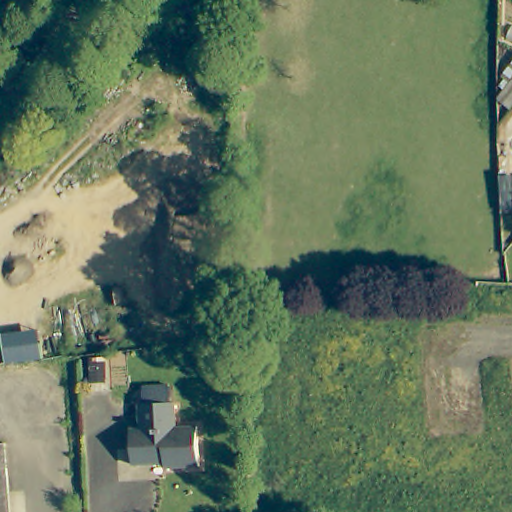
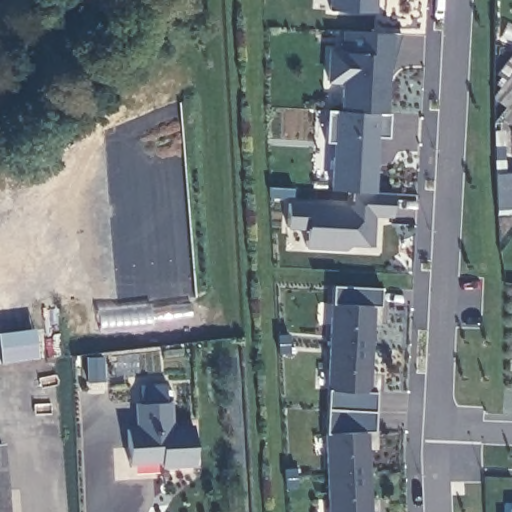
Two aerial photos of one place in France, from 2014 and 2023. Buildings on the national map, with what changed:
new [(380,12),(335,10),(335,0),(380,0),(380,12)]
new [(330,49),(345,49),(345,32),(350,32),(350,26),(395,29),(395,34),(403,34),(394,69),(391,69),(389,117),(345,116),(342,111),(342,84),(328,82),(330,49)]
unchanged [(489,94),(512,68),(512,95),(502,106),(489,94)]
new [(387,136),(379,136),(377,192),(396,195),(394,217),(375,217),(375,247),(351,246),(346,251),(305,249),(308,230),(290,229),(289,199),(271,197),(273,187),(296,189),(296,202),(352,205),(353,190),(332,190),(335,141),(328,141),(328,110),(342,111),(345,116),(389,117),(387,136)]
new [(508,172),(512,172),(512,209),(505,210),(505,225),(500,226),(495,130),(505,130),(508,172)]
new [(380,323),(375,323),(371,373),(380,373),(377,430),(377,448),(370,449),(371,498),(378,498),(379,512),(329,512),(325,433),(327,433),(330,388),(328,388),(332,303),(335,303),(335,285),(381,287),(381,305),(380,323)]
unchanged [(37,330),(41,360),(5,364),(1,335),(37,330)]
unchanged [(97,357),(100,382),(85,383),(83,358),(97,357)]
unchanged [(160,463),(159,458),(126,460),(125,425),(135,425),(132,400),(136,400),(135,382),(164,380),(165,397),(169,397),(170,422),(191,421),(195,460),(160,463)]
unchanged [(4,512),(0,512),(0,453),(4,512)]
new [(512,510),(512,512),(509,512),(509,510),(512,510)]

